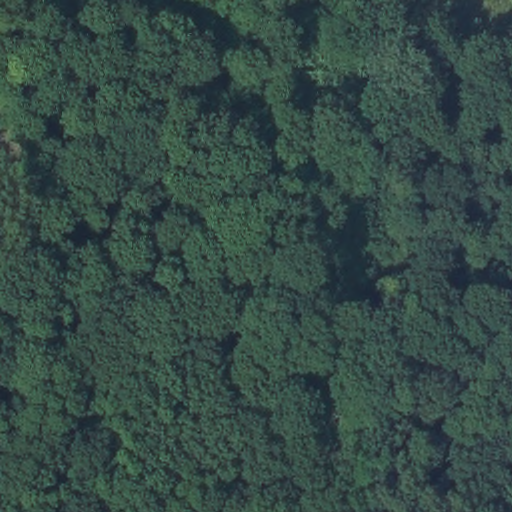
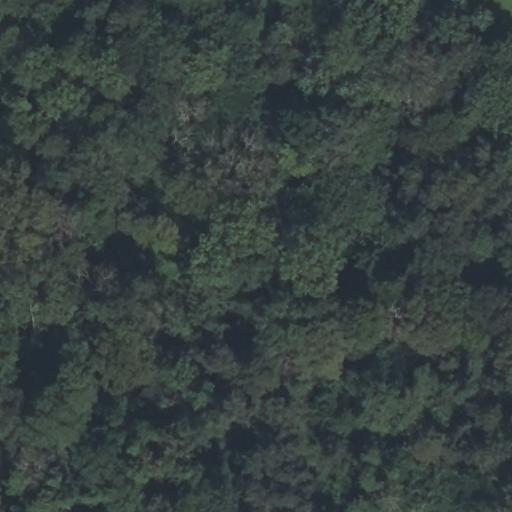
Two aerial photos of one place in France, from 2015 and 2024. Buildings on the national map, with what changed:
[]

